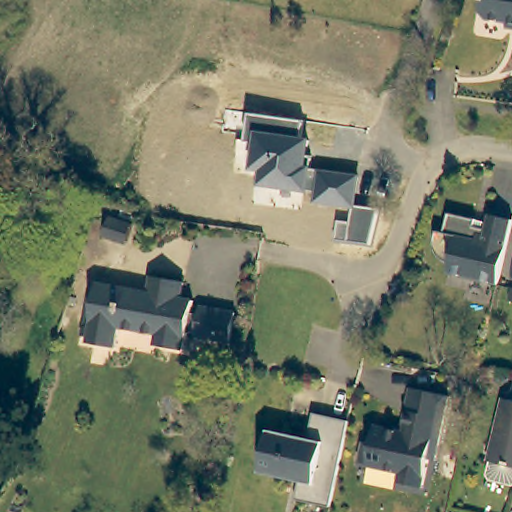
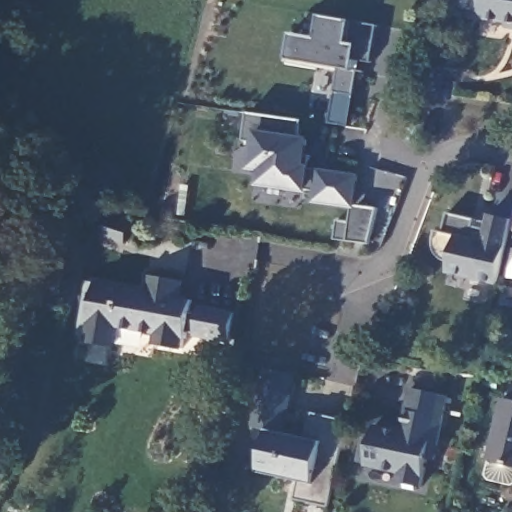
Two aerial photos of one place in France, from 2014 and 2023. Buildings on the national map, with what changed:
unchanged [(484,21),(479,15),(481,0),(512,0),(512,31),(503,30),(503,24),(484,21)]
new [(371,64),(362,61),(350,126),(327,122),(337,71),(285,62),(287,59),(292,33),(315,36),(319,15),(354,21),(377,25),(371,64)]
unchanged [(380,210),(368,245),(334,240),(338,220),(349,221),(351,209),(313,203),(314,195),(256,187),(258,172),(248,171),(250,142),(244,142),(249,114),(304,120),(303,139),(309,140),(307,155),(313,156),(310,168),(359,174),(354,205),(380,210)]
unchanged [(504,246),(497,277),(467,271),(468,263),(449,260),(449,255),(442,252),(437,245),(434,236),(435,228),(436,224),(443,225),(448,207),(477,213),(476,220),(487,222),(489,209),(512,212),(512,214),(504,246)]
unchanged [(133,225),(127,244),(104,235),(109,217),(133,225)]
unchanged [(193,312),(200,313),(202,305),(237,310),(232,341),(198,335),(199,332),(190,331),(189,338),(186,338),(184,350),(159,344),(160,333),(122,326),(118,348),(89,343),(89,339),(83,338),(84,326),(91,327),(99,285),(149,293),(152,276),(177,280),(184,281),(182,297),(195,300),(193,312)]
unchanged [(290,498),(295,478),(257,470),(262,428),(253,426),(263,368),(293,373),(283,431),(305,435),(310,411),(346,419),(326,506),(290,498)]
unchanged [(510,485),(488,480),(485,475),(489,462),(486,461),(500,400),(505,400),(509,386),(509,381),(512,381),(512,484),(510,485)]
unchanged [(401,430),(408,425),(411,410),(409,410),(414,386),(418,387),(450,395),(436,458),(429,457),(423,485),(400,480),(402,470),(399,470),(368,463),(369,461),(361,460),(366,440),(373,441),(377,424),(401,430)]

